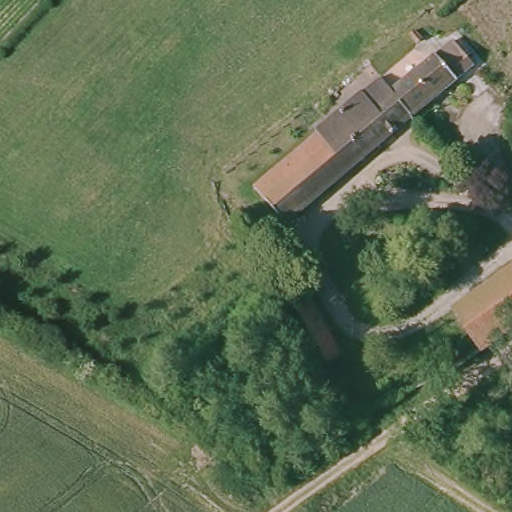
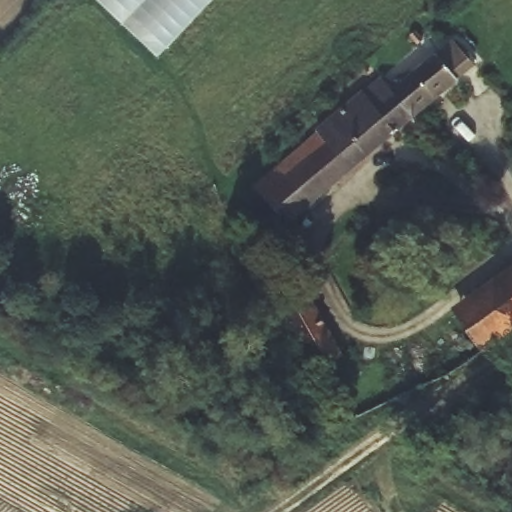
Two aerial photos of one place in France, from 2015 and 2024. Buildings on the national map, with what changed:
new [(98,0),(214,0),(159,59),(98,0)]
unchanged [(285,222),(255,184),(320,133),(317,128),(381,75),(392,87),(435,49),(458,76),(414,113),(285,222)]
unchanged [(472,340),(453,315),(512,273),(512,311),(472,340)]
unchanged [(291,342),(272,305),(267,298),(295,283),(333,352),(307,368),(291,342)]

